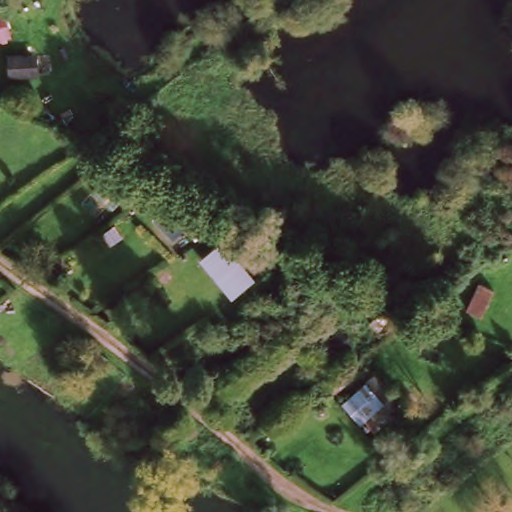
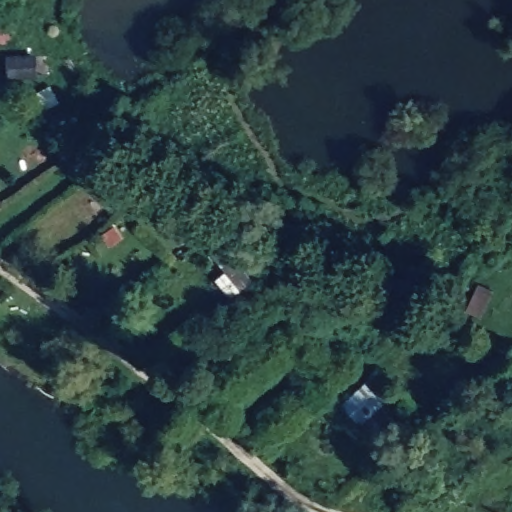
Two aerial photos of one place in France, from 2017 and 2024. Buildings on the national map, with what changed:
unchanged [(229,297),(200,262),(223,245),(249,278),(229,297)]
unchanged [(462,303),(472,275),(486,280),(476,308),(462,303)]
unchanged [(403,409),(368,436),(340,404),(375,376),(403,409)]

